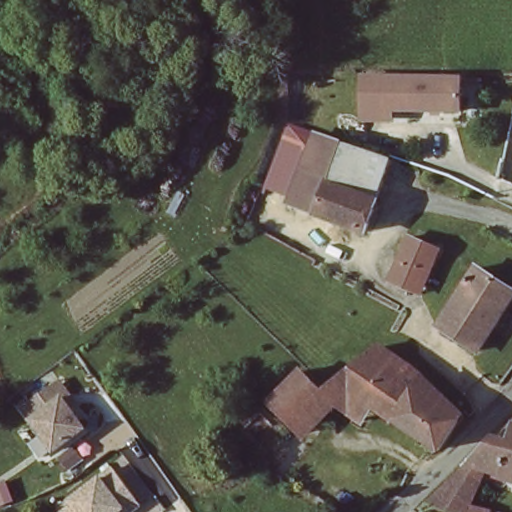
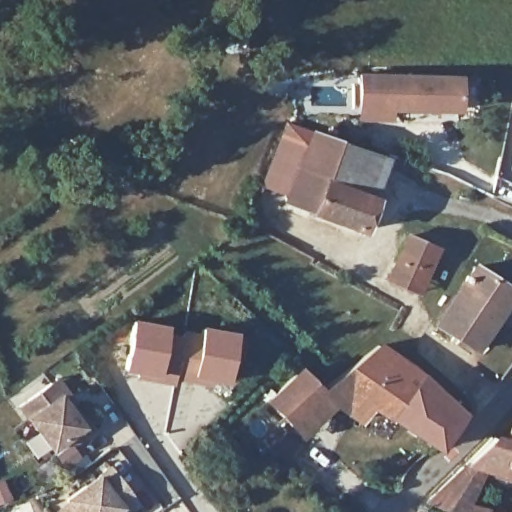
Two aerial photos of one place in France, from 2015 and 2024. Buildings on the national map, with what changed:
unchanged [(419,70),(460,71),(459,107),(453,107),(395,107),(395,120),(362,119),(360,69),(419,70)]
unchanged [(377,185),(372,183),(364,200),(373,205),(363,232),(287,205),(316,134),(387,161),(377,185)]
unchanged [(390,275),(406,228),(439,245),(420,295),(390,275)]
unchanged [(475,265),(507,285),(512,288),(512,300),(499,321),(494,318),(475,348),(437,325),(475,265)]
new [(131,317),(171,325),(170,329),(172,348),(172,362),(180,364),(176,380),(175,385),(135,378),(136,376),(122,372),(131,317)]
new [(199,332),(201,325),(237,331),(227,383),(214,381),(213,387),(176,380),(180,364),(172,362),(172,348),(170,329),(199,332)]
unchanged [(438,445),(374,405),(360,421),(334,405),(303,434),(266,396),(296,365),(323,390),(378,342),(419,368),(463,407),(438,445)]
unchanged [(47,451),(15,407),(46,385),(53,380),(71,406),(65,410),(78,430),(47,451)]
unchanged [(472,500),(495,510),(494,512),(456,512),(426,501),(430,496),(475,449),(480,445),(491,433),(510,439),(512,434),(512,474),(489,468),(472,500)]
unchanged [(53,502),(63,495),(97,470),(120,500),(124,506),(117,512),(61,512),(53,502)]

